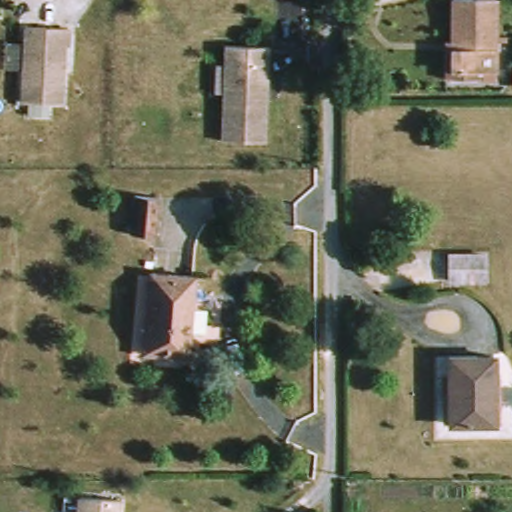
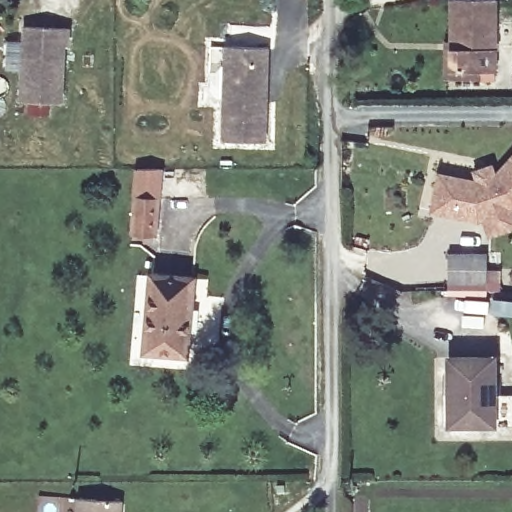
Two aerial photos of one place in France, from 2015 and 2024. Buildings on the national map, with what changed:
unchanged [(451,40),(450,1),(473,0),(496,0),(497,71),(480,72),(480,77),(445,77),(445,40),(451,40)]
unchanged [(67,31),(62,105),(18,102),(21,28),(67,31)]
unchanged [(267,144),(224,142),(225,100),(211,99),(212,64),(227,64),(227,47),(270,49),(267,144)]
new [(484,219),(478,221),(431,212),(439,175),(476,182),(477,181),(474,172),(491,166),(495,175),(496,175),(512,157),(512,228),(489,236),(484,219)]
unchanged [(159,242),(136,239),(140,202),(163,205),(159,242)]
unchanged [(450,256),(485,256),(485,281),(450,281),(450,256)]
unchanged [(192,278),(186,356),(144,352),(150,276),(192,278)]
unchanged [(495,357),(495,425),(450,426),(448,357),(495,357)]
unchanged [(126,512),(69,512),(70,504),(126,507),(126,512)]

